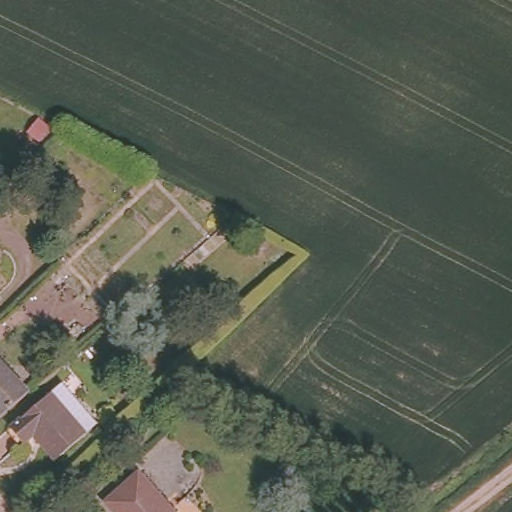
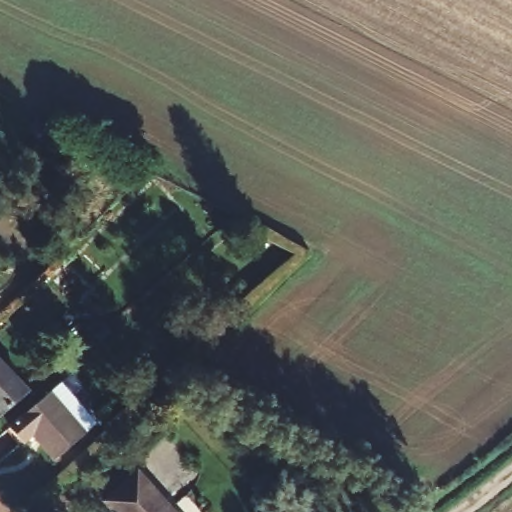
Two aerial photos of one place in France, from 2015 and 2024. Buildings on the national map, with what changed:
unchanged [(0,416),(0,364),(26,394),(0,416)]
unchanged [(86,432),(55,459),(33,434),(25,439),(10,421),(50,389),(86,432)]
unchanged [(163,511),(169,507),(173,512),(104,512),(97,503),(133,474),(163,511)]

